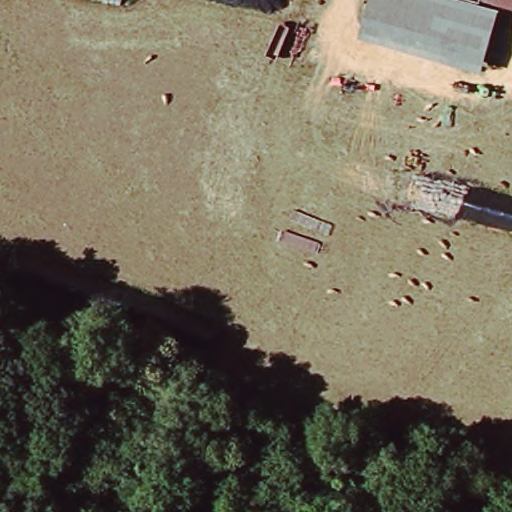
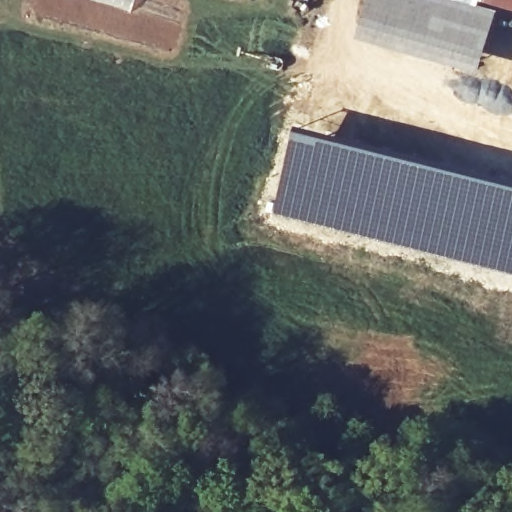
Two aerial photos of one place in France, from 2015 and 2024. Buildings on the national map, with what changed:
unchanged [(357,42),(368,0),(448,0),(472,6),(494,11),(480,73),(357,42)]
unchanged [(448,0),(473,0),(472,6),(448,0)]
unchanged [(512,0),(512,4),(497,0),(512,0)]
new [(296,129),(512,185),(512,274),(411,247),(274,214),(296,129)]

